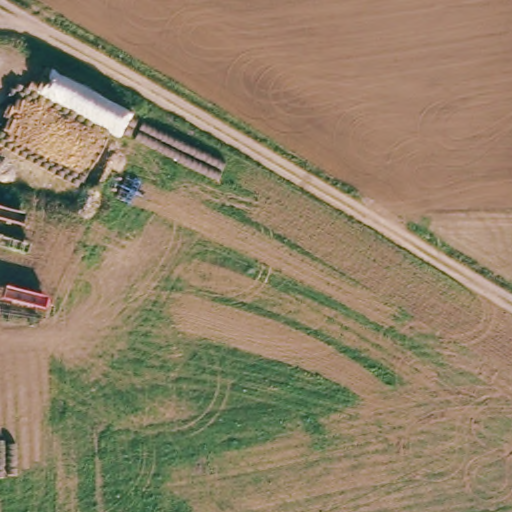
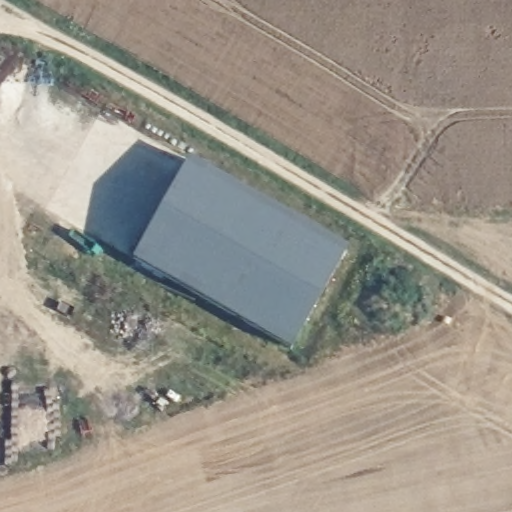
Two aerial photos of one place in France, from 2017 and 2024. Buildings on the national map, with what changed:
new [(346,251),(292,350),(133,261),(187,163),(346,251)]

